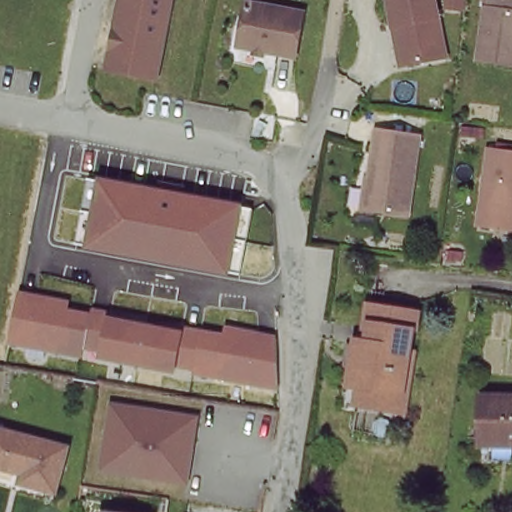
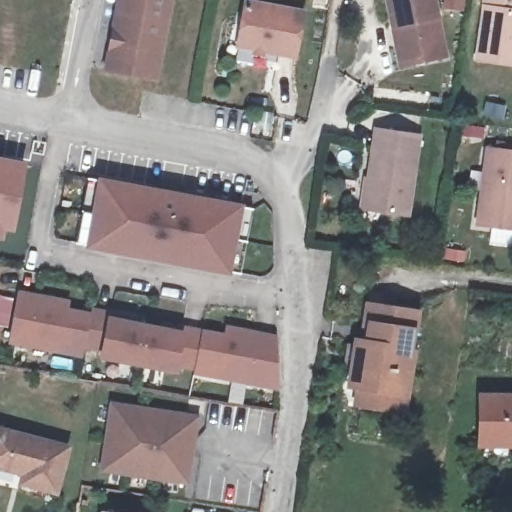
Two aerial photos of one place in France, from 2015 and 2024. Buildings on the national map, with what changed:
unchanged [(106,67),(120,0),(170,0),(155,77),(106,67)]
unchanged [(389,0),(434,0),(442,61),(405,66),(397,66),(392,25),(389,0)]
unchanged [(512,0),(512,68),(475,60),(483,0),(512,0)]
unchanged [(296,55),(240,45),(247,2),(302,13),(296,55)]
unchanged [(410,214),(369,208),(380,131),(421,138),(410,214)]
unchanged [(512,153),(512,230),(477,223),(489,149),(512,153)]
new [(10,231),(5,230),(2,239),(0,239),(0,158),(25,163),(10,231)]
unchanged [(255,209),(242,276),(77,243),(88,178),(255,209)]
unchanged [(70,298),(69,307),(88,312),(90,307),(108,310),(107,317),(184,332),(187,325),(224,332),(225,326),(276,335),(279,391),(177,370),(175,374),(100,359),(100,354),(85,351),(83,356),(8,343),(20,289),(70,298)]
unchanged [(412,348),(406,354),(405,365),(410,370),(403,409),(367,403),(368,388),(353,385),(360,338),(372,341),(376,324),(370,322),(373,304),(417,314),(412,348)]
unchanged [(510,444),(510,438),(478,436),(479,398),(512,399),(512,445),(510,444)]
unchanged [(188,419),(183,451),(193,452),(190,476),(189,485),(105,474),(107,460),(113,408),(188,419)]
unchanged [(18,491),(21,479),(0,475),(0,442),(63,455),(54,499),(18,491)]

